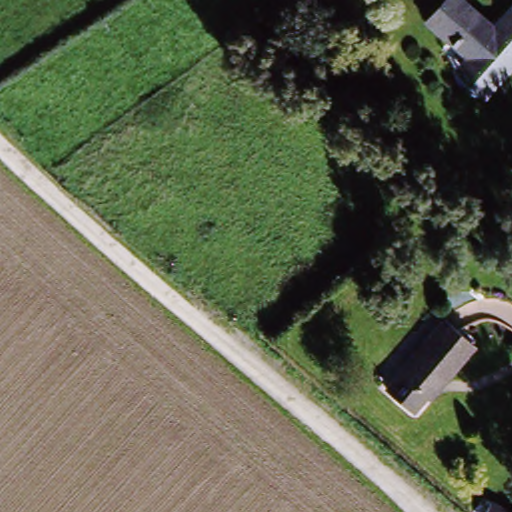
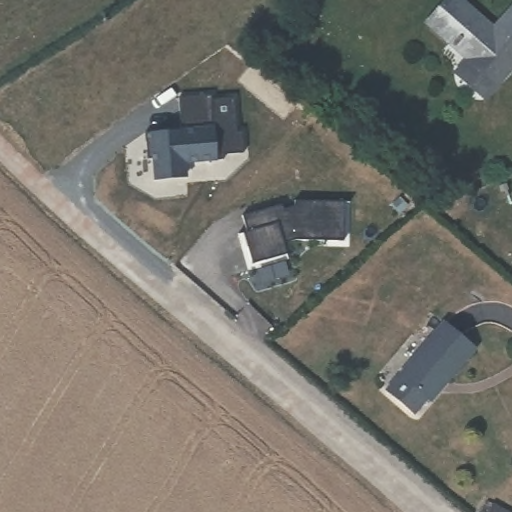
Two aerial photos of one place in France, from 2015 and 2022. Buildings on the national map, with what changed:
unchanged [(466,63),(470,59),(428,24),(449,0),(455,0),(493,31),(512,8),(512,66),(495,86),(485,99),(457,76),(466,63)]
new [(212,100),(233,99),(237,134),(242,134),(242,152),(222,155),(222,159),(217,159),(217,161),(185,165),(187,179),(155,181),(149,132),(181,129),(180,98),(210,94),(212,100)]
new [(277,207),(278,212),(290,209),(290,203),(340,205),(338,245),(290,243),(290,254),(247,267),(238,234),(242,234),(237,218),(277,207)]
unchanged [(426,403),(414,417),(386,393),(443,325),(477,353),(450,384),(431,407),(426,403)]
new [(488,511),(491,512),(487,512),(488,511)]

